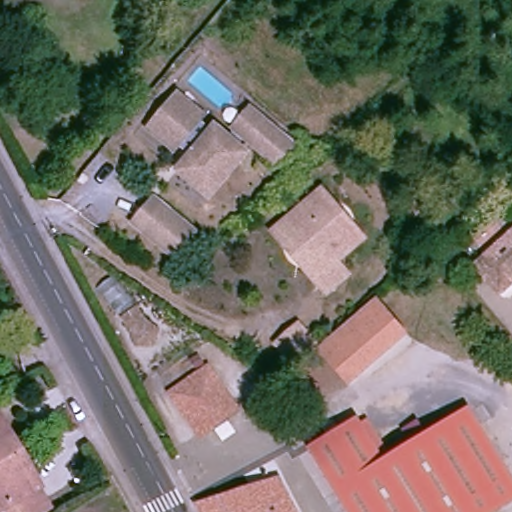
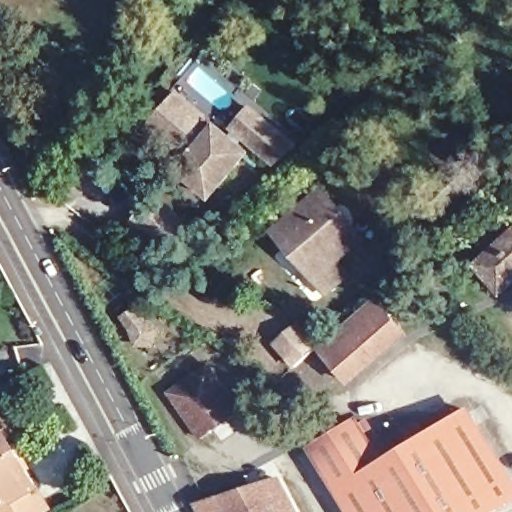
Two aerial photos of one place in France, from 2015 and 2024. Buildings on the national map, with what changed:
unchanged [(170,143),(143,120),(172,86),(199,109),(195,114),(174,139),(170,143)]
unchanged [(225,130),(231,123),(228,120),(245,101),(290,139),(270,156),(240,130),(234,138),(231,135),(225,130)]
unchanged [(202,170),(193,180),(173,163),(185,149),(174,139),(195,114),(207,123),(211,119),(225,130),(231,135),(234,138),(243,146),(214,180),(202,170)]
unchanged [(267,226),(317,184),(330,199),(346,218),(359,233),(332,257),(343,270),(321,289),(297,260),(280,242),(267,226)]
unchanged [(124,220),(144,196),(186,231),(162,252),(124,220)]
unchanged [(479,267),(512,237),(512,288),(504,294),(479,267)]
unchanged [(102,274),(153,326),(146,345),(130,345),(90,282),(102,274)]
unchanged [(409,334),(349,385),(317,347),(376,297),(409,334)]
unchanged [(288,320),(308,342),(286,362),(266,340),(288,320)]
unchanged [(169,384),(207,357),(239,401),(200,428),(169,384)]
unchanged [(347,421),(351,427),(358,422),(381,459),(405,444),(397,430),(409,422),(418,436),(459,411),(508,491),(476,512),(345,512),(305,448),(347,421)]
unchanged [(0,512),(0,421),(45,498),(49,506),(39,512),(0,512)]
unchanged [(197,512),(193,503),(279,478),(297,512),(197,512)]

